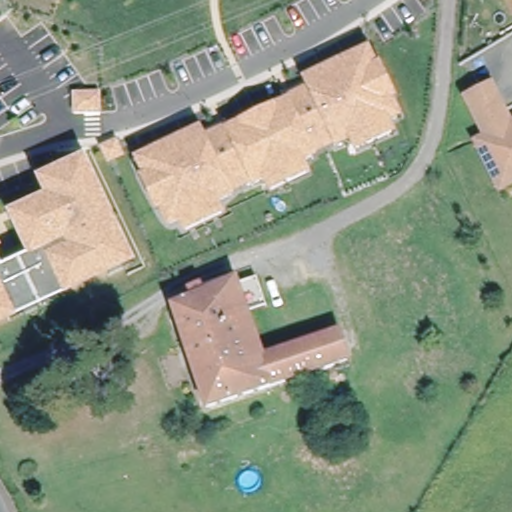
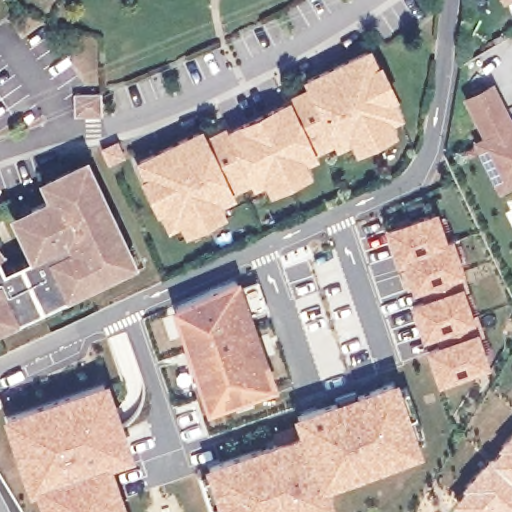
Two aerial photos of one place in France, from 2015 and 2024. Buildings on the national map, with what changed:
unchanged [(201,126),(205,135),(306,88),(300,80),(370,46),(405,119),(392,124),(398,136),(356,154),(350,144),(306,164),(311,179),(268,197),(260,182),(232,192),(238,204),(166,236),(134,165),(201,126)]
unchanged [(482,144),(492,139),(483,123),(470,100),(490,89),(503,112),(512,126),(512,183),(506,186),(482,144)]
new [(101,94),(102,115),(77,115),(76,95),(101,94)]
unchanged [(2,267),(26,260),(8,213),(42,197),(34,179),(86,156),(139,265),(0,328),(0,261),(2,267)]
new [(435,210),(446,239),(452,237),(465,277),(468,290),(464,292),(473,316),(478,314),(484,332),(479,335),(491,367),(438,385),(425,348),(440,343),(436,335),(422,340),(410,302),(426,297),(422,286),(411,290),(402,262),(396,265),(384,227),(435,210)]
unchanged [(6,251),(0,253),(0,242),(6,251)]
new [(267,306),(251,313),(273,387),(206,411),(170,307),(237,276),(240,284),(257,278),(267,306)]
demolished [(168,315),(190,305),(186,296),(221,280),(225,290),(232,287),(234,292),(244,320),(258,363),(350,329),(358,357),(202,415),(168,315)]
new [(292,412),(396,377),(421,452),(327,487),(333,505),(312,512),(219,512),(204,463),(298,431),(292,412)]
new [(29,492),(0,414),(106,378),(134,457),(111,466),(128,512),(42,512),(35,490),(29,492)]
new [(512,433),(512,512),(464,512),(452,501),(474,474),(512,433)]

